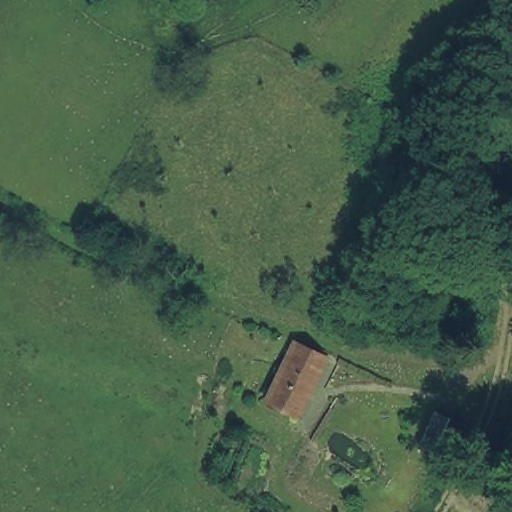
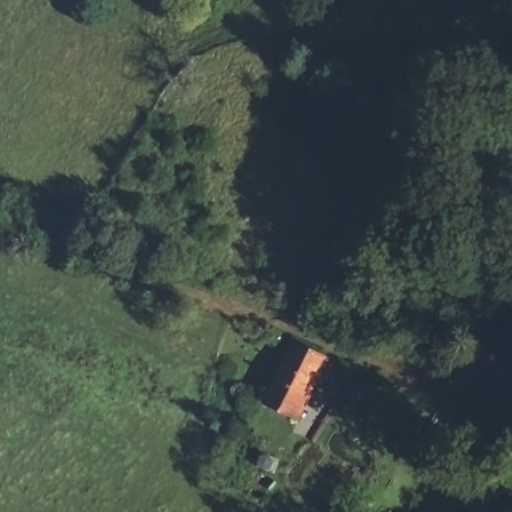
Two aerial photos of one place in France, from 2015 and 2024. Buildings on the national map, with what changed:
unchanged [(266,405),(278,380),(295,345),(327,360),(310,396),(299,420),(266,405)]

